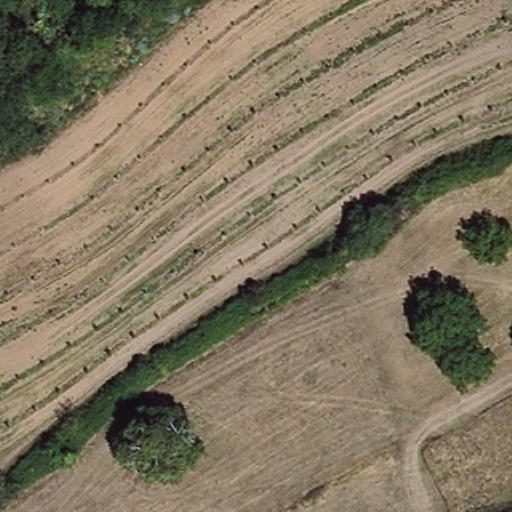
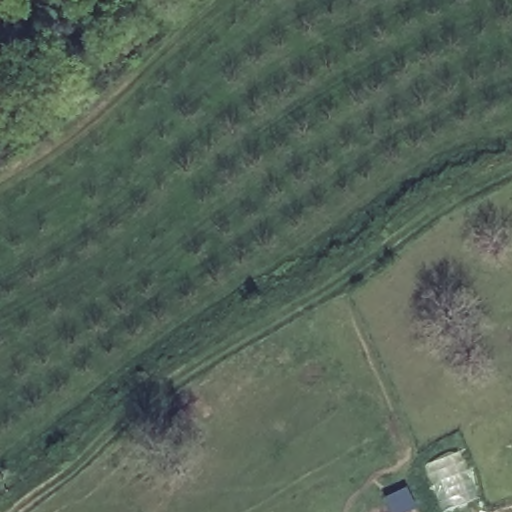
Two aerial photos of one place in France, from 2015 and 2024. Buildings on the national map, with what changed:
new [(415,506),(402,512),(389,512),(380,496),(405,484),(415,506)]

